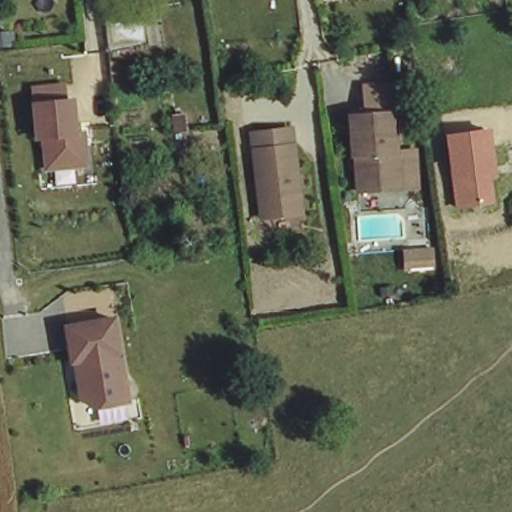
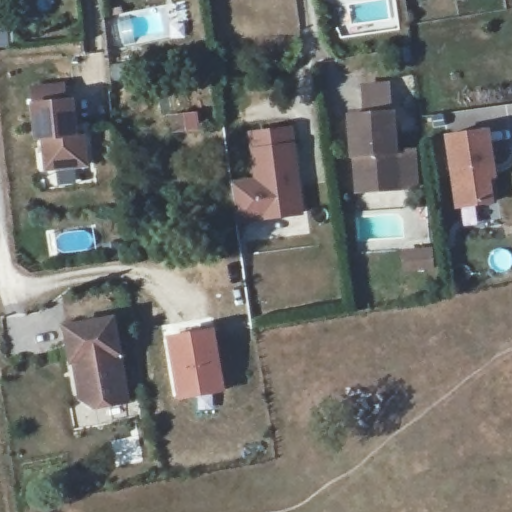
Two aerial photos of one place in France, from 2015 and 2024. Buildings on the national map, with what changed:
unchanged [(43,141),(34,142),(30,103),(36,103),(34,85),(66,82),(69,99),(76,97),(81,133),(89,132),(92,168),(45,172),(43,141)]
unchanged [(403,151),(399,151),(405,191),(362,196),(360,159),(355,159),(351,121),(397,116),(403,151)]
unchanged [(250,129),(290,123),(297,174),(302,209),(267,214),(262,215),(262,220),(237,224),(231,179),(257,177),(250,129)]
unchanged [(444,134),(489,127),(497,178),(491,180),(495,204),(456,209),(444,134)]
unchanged [(124,400),(90,404),(78,395),(73,363),(76,363),(75,357),(70,358),(64,323),(112,317),(124,400)]
new [(216,326),(226,391),(179,401),(168,337),(216,326)]

